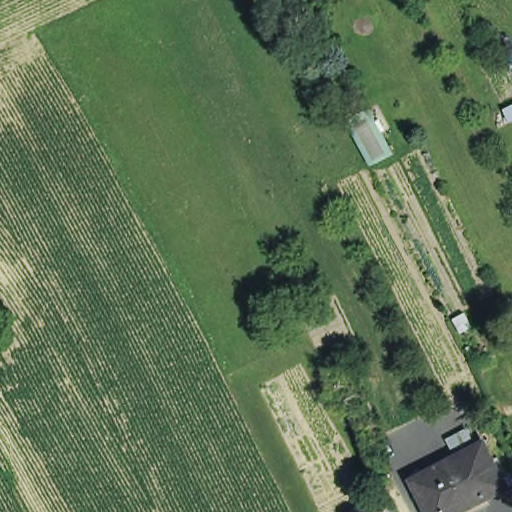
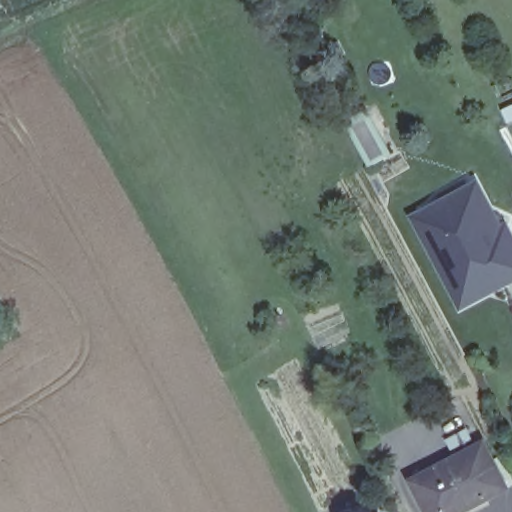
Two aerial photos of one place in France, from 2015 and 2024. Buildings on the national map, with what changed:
new [(512,283),(458,313),(406,215),(474,182),(512,254),(512,283)]
unchanged [(462,512),(430,512),(414,481),(429,473),(485,443),(508,487),(462,512)]

